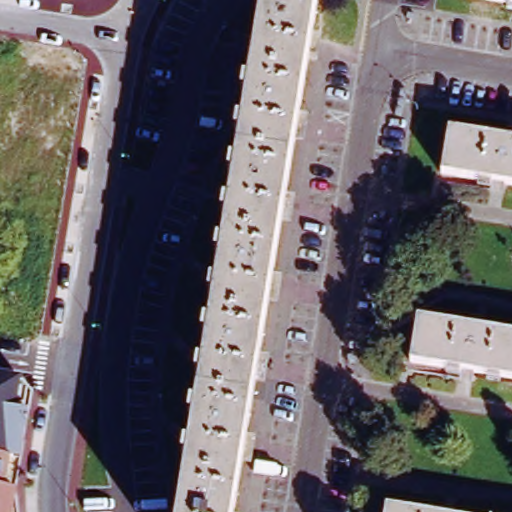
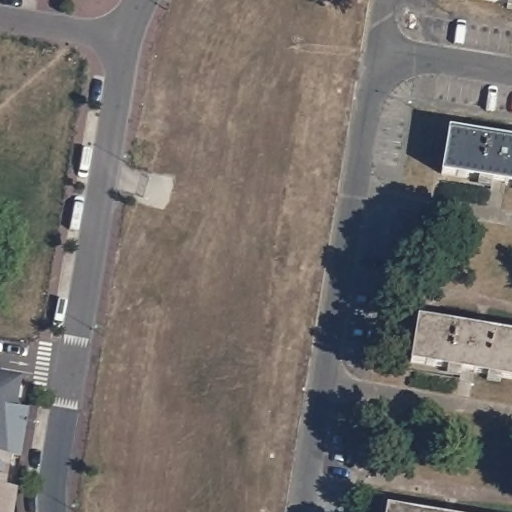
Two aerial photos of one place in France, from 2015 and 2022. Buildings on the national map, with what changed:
demolished [(317,9),(234,512),(181,512),(265,0),(317,9)]
unchanged [(467,0),(512,0),(512,8),(467,1),(467,0)]
unchanged [(512,188),(442,177),(449,133),(512,143),(512,188)]
unchanged [(512,382),(411,365),(418,322),(512,338),(512,382)]
unchanged [(20,378),(17,408),(30,411),(21,461),(12,458),(7,487),(18,490),(14,512),(0,512),(0,374),(20,378)]
unchanged [(387,511),(396,512),(386,512),(387,511)]

